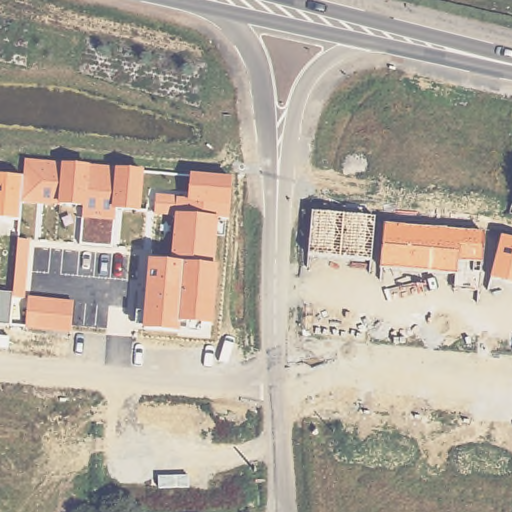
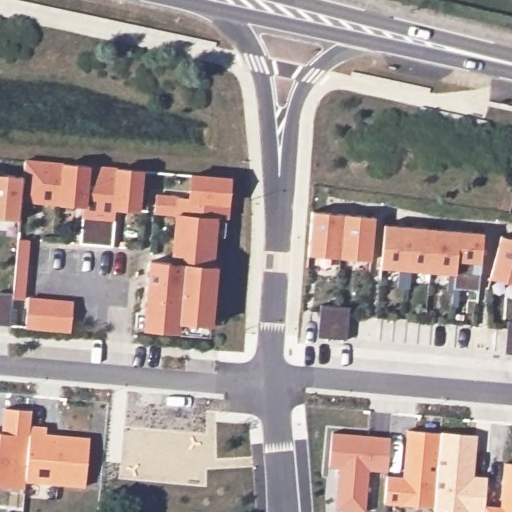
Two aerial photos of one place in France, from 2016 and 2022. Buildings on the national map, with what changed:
unchanged [(113,245),(80,243),(86,207),(23,204),(20,220),(0,218),(0,174),(23,176),(26,159),(146,170),(141,211),(115,211),(113,245)]
unchanged [(227,217),(218,216),(213,325),(201,325),(201,334),(142,330),(149,261),(171,262),(175,215),(153,214),(156,195),(188,197),(192,174),(232,176),(227,217)]
unchanged [(371,260),(309,256),(313,212),(375,217),(371,260)]
unchanged [(478,290),(453,288),(455,275),(380,269),(385,224),(484,234),(478,290)]
unchanged [(501,236),(512,239),(512,284),(490,278),(501,236)]
unchanged [(23,328),(28,302),(13,301),(11,325),(0,324),(0,293),(13,295),(20,239),(31,240),(26,295),(74,300),(70,334),(23,328)]
new [(321,305),(335,306),(332,339),(318,338),(321,305)]
new [(4,408),(31,410),(29,425),(24,481),(24,488),(0,486),(0,433),(1,433),(4,408)]
new [(29,425),(45,427),(45,434),(88,438),(84,486),(24,481),(29,425)]
new [(385,500),(387,473),(403,474),(407,427),(439,432),(433,505),(385,500)]
new [(330,432),(388,437),(385,471),(367,470),(363,511),(334,509),(338,467),(327,466),(330,432)]
new [(439,432),(474,435),(470,480),(485,481),(482,512),(457,512),(432,510),(439,432)]
new [(512,462),(512,512),(482,512),(483,503),(501,505),(503,461),(512,462)]

